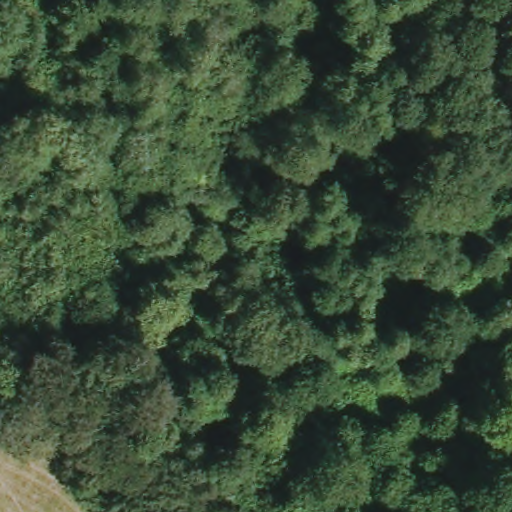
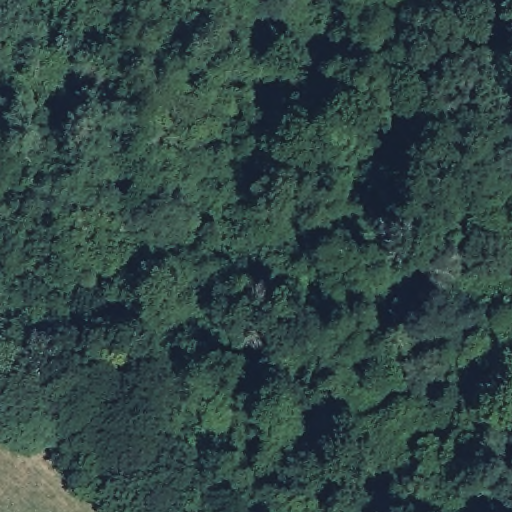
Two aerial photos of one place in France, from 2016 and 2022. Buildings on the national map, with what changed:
unchanged [(0,359),(16,383),(0,395),(0,359)]

